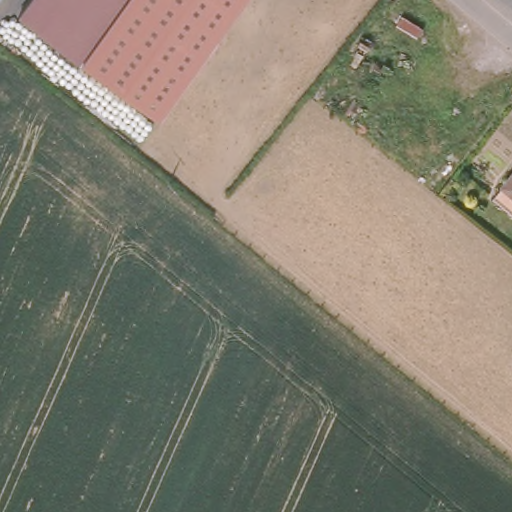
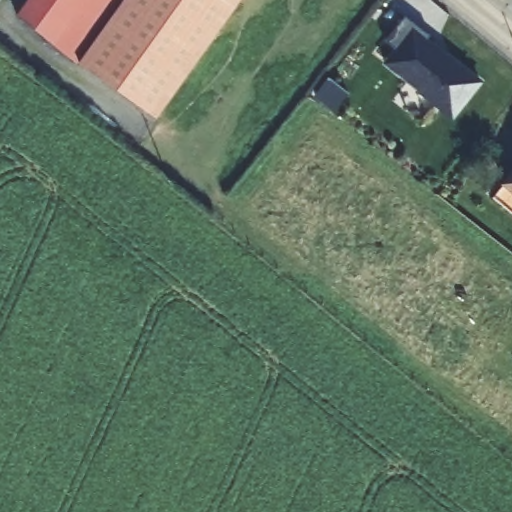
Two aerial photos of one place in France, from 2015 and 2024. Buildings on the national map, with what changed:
unchanged [(118,0),(75,59),(12,14),(23,0),(118,0)]
unchanged [(80,64),(75,59),(118,0),(243,0),(157,120),(80,64)]
new [(404,16),(429,37),(425,42),(445,58),(447,56),(480,83),(452,119),(439,109),(437,111),(415,93),(416,91),(385,65),(395,51),(384,43),(404,16)]
unchanged [(489,188),(512,160),(512,208),(489,188)]

